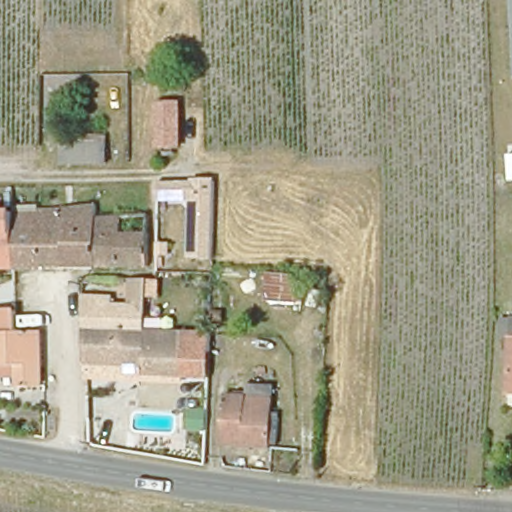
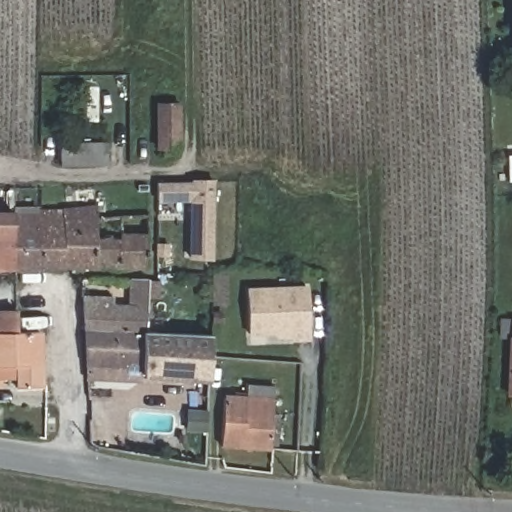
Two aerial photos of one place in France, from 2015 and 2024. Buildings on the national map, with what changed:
unchanged [(157,145),(157,125),(157,102),(178,102),(178,125),(178,145),(157,145)]
unchanged [(100,139),(101,158),(66,160),(66,142),(100,139)]
unchanged [(509,181),(507,155),(512,154),(512,181),(509,181)]
unchanged [(213,264),(191,263),(192,204),(156,204),(157,189),(192,189),(213,189),(213,241),(213,264)]
unchanged [(94,272),(42,272),(40,213),(57,214),(94,209),(94,220),(94,272)]
unchanged [(42,272),(15,272),(14,216),(13,212),(40,213),(42,272)]
unchanged [(15,272),(0,272),(0,216),(14,216),(15,272)]
unchanged [(147,272),(136,272),(94,272),(94,220),(147,220),(147,272)]
unchanged [(156,246),(167,246),(167,258),(156,258),(156,246)]
demolished [(267,270),(297,274),(295,306),(264,303),(267,270)]
unchanged [(86,312),(83,312),(83,302),(82,284),(94,284),(95,301),(109,301),(109,310),(131,311),(131,283),(146,283),(146,336),(86,335),(86,312)]
new [(292,341),(292,337),(276,338),(276,334),(249,336),(247,287),(308,285),(309,340),(292,341)]
unchanged [(38,327),(39,382),(16,382),(15,373),(0,373),(0,328),(17,327),(38,327)]
unchanged [(87,368),(86,335),(146,336),(182,336),(204,336),(204,378),(183,377),(143,376),(143,382),(88,382),(87,368)]
unchanged [(505,388),(506,337),(512,337),(512,389),(505,388)]
unchanged [(222,398),(269,400),(268,451),(220,449),(222,398)]

